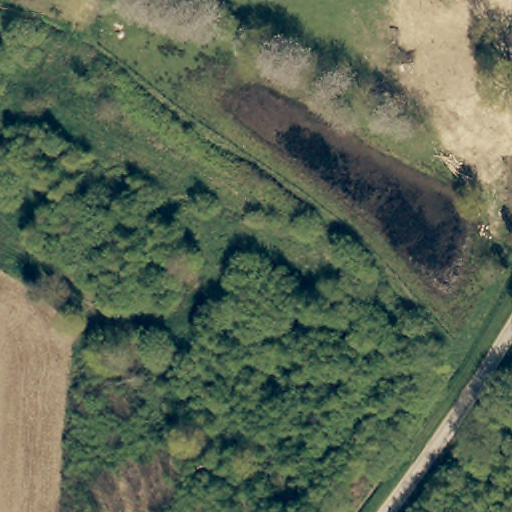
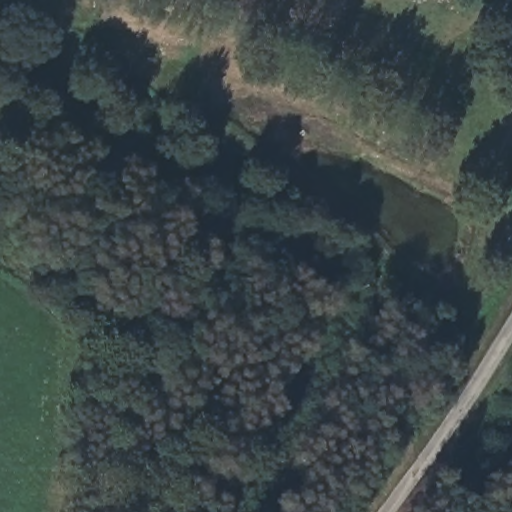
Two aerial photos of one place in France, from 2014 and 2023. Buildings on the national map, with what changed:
[]

